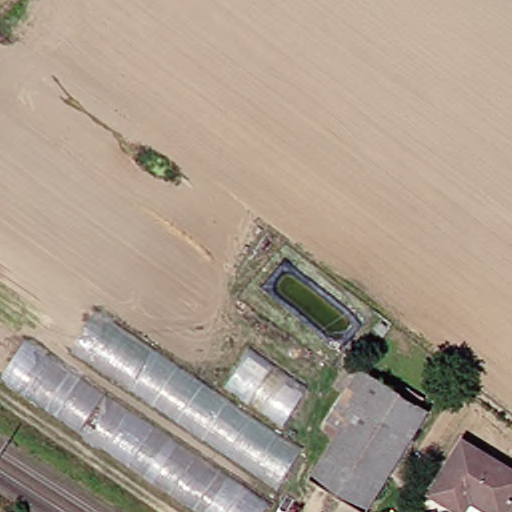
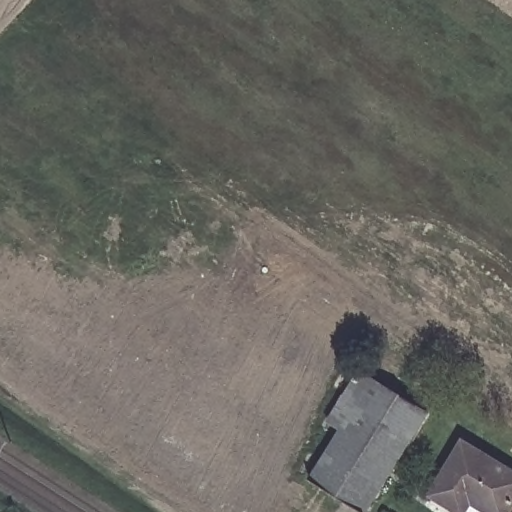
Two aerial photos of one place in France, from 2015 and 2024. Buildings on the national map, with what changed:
new [(27,342),(64,364),(95,314),(223,395),(251,351),(307,389),(277,437),(302,451),(263,512),(198,512),(2,379),(27,342)]
unchanged [(361,506),(312,471),(345,424),(339,419),(378,367),(432,406),(387,472),(361,506)]
demolished [(262,512),(207,512),(62,416),(85,379),(271,499),(262,512)]
unchanged [(512,512),(488,512),(472,501),(461,512),(459,512),(431,494),(467,445),(512,473),(512,512)]

